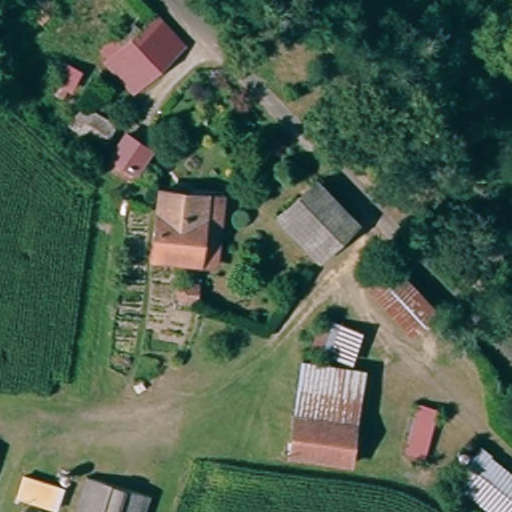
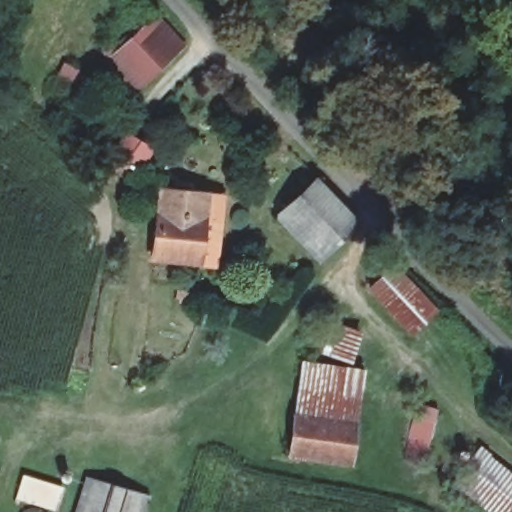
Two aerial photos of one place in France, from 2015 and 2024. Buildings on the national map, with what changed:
unchanged [(106,57),(118,47),(154,11),(180,37),(144,73),(133,84),(106,57)]
unchanged [(71,124),(82,105),(114,124),(103,142),(71,124)]
unchanged [(134,172),(109,159),(125,124),(152,140),(134,172)]
unchanged [(286,219),(320,187),(358,226),(324,258),(286,219)]
unchanged [(200,263),(153,257),(160,189),(225,198),(222,224),(217,266),(200,263)]
unchanged [(395,257),(441,302),(411,327),(370,280),(395,257)]
unchanged [(196,304),(167,300),(170,285),(197,288),(196,304)]
unchanged [(356,363),(316,345),(328,317),(368,335),(356,363)]
unchanged [(296,410),(301,361),(362,368),(358,417),(296,410)]
unchanged [(355,456),(291,450),(296,410),(358,417),(355,456)]
unchanged [(453,483),(484,445),(512,467),(512,512),(490,512),(453,483)]
unchanged [(81,470),(146,487),(139,512),(70,512),(81,470)]
unchanged [(60,512),(48,512),(26,506),(31,486),(65,496),(60,512)]

